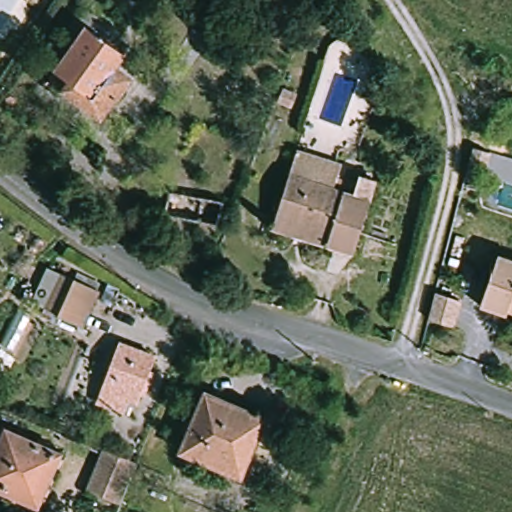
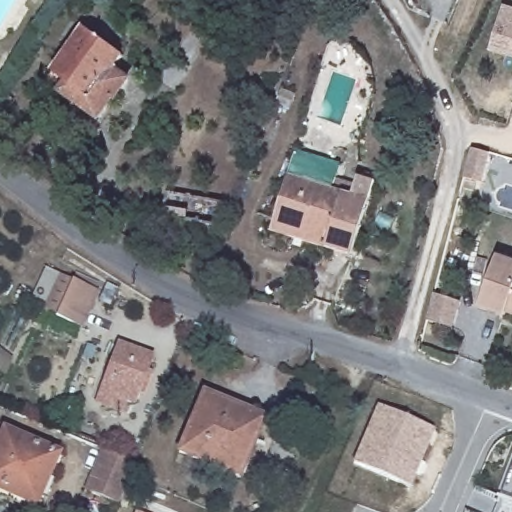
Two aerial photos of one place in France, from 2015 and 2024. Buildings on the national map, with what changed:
new [(488,47),(500,5),(512,8),(512,55),(488,47)]
unchanged [(65,85),(51,74),(85,26),(129,60),(119,74),(130,83),(99,124),(87,116),(58,93),(65,85)]
unchanged [(489,154),(482,183),(465,180),(472,150),(489,154)]
unchanged [(339,183),(333,199),(286,180),(298,151),(344,170),(339,183)]
unchanged [(270,219),(286,180),(333,199),(339,183),(355,189),(359,178),(377,186),(348,259),(323,249),(267,225),(270,219)]
unchanged [(505,307),(504,313),(479,306),(494,258),(512,264),(512,310),(505,307)]
unchanged [(98,288),(82,331),(51,319),(54,311),(43,306),(58,273),(98,288)]
unchanged [(462,303),(456,330),(432,324),(437,299),(438,297),(462,303)]
unchanged [(125,396),(119,413),(95,403),(119,343),(155,356),(140,394),(137,401),(125,396)]
unchanged [(195,461),(177,453),(207,391),(257,416),(266,420),(257,440),(241,472),(237,482),(195,461)]
new [(400,485),(357,466),(382,409),(436,433),(430,448),(411,490),(400,485)]
unchanged [(42,511),(0,493),(0,428),(66,456),(42,511)]
unchanged [(136,464),(120,505),(87,493),(104,451),(136,464)]
new [(505,499),(512,481),(512,502),(505,499)]
new [(139,512),(137,512),(138,511),(139,512)]

